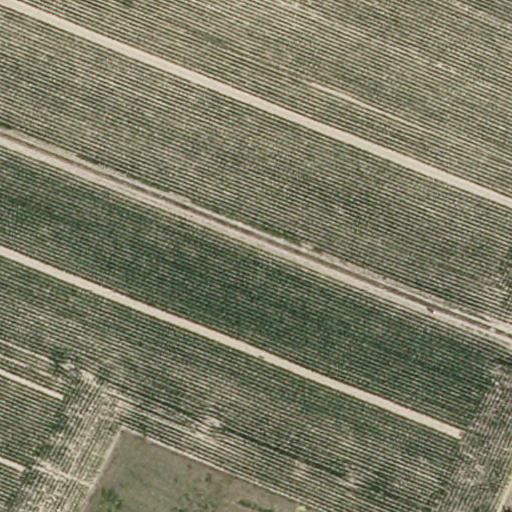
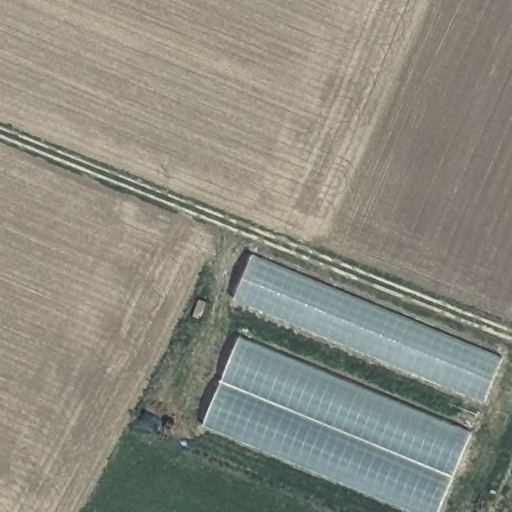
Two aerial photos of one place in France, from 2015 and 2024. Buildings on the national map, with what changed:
new [(486,402),(234,298),(253,254),(506,357),(486,402)]
new [(440,512),(414,512),(204,425),(241,335),(474,432),(440,512)]

